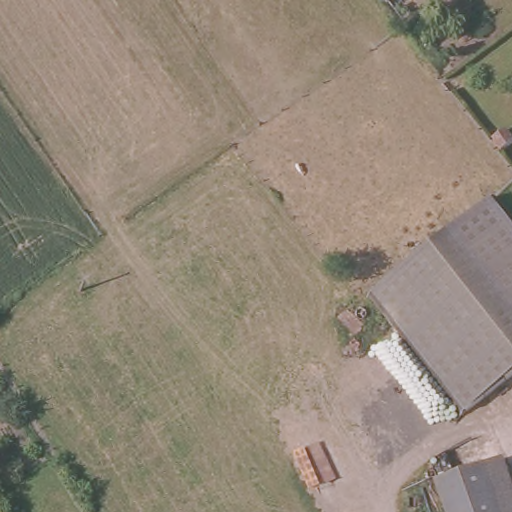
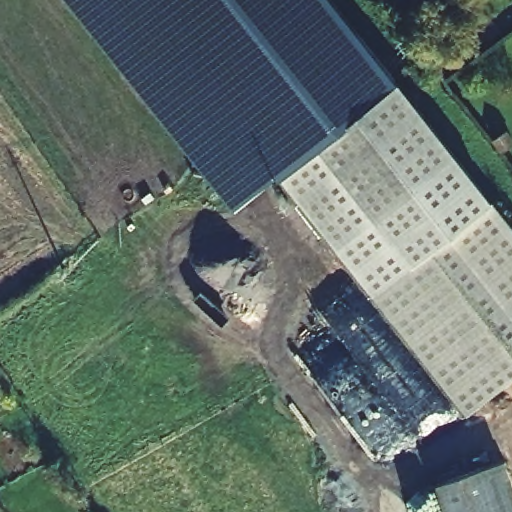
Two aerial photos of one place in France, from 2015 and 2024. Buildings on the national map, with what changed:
new [(278,175),(236,209),(69,0),(333,0),(399,82),(411,97),(288,181),(278,175)]
unchanged [(392,6),(387,0),(400,0),(392,6)]
unchanged [(467,412),(288,181),(411,97),(512,226),(512,376),(467,412)]
unchanged [(491,464),(508,512),(452,512),(442,484),(491,464)]

